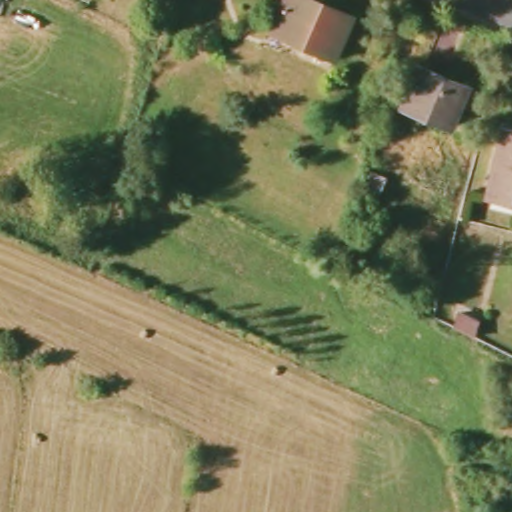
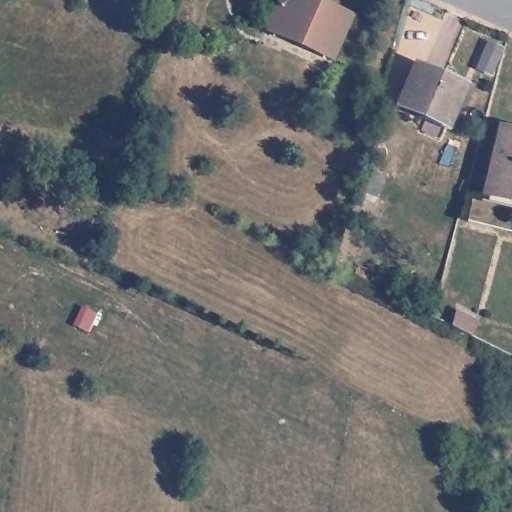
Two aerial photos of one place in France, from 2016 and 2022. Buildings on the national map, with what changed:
unchanged [(270,23),(281,0),(307,0),(350,19),(330,63),(283,42),(265,34),(270,23)]
unchanged [(403,103),(419,67),(462,86),(447,123),(403,103)]
unchanged [(484,192),(503,125),(512,128),(512,200),(484,192)]
unchanged [(385,178),(380,199),(365,194),(372,174),(385,178)]
unchanged [(451,329),(455,312),(475,318),(469,338),(451,329)]

